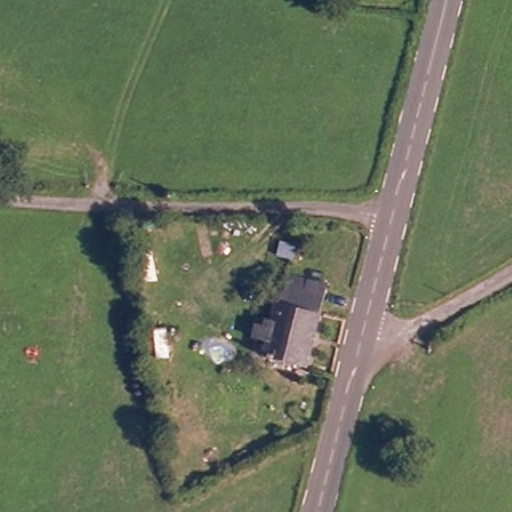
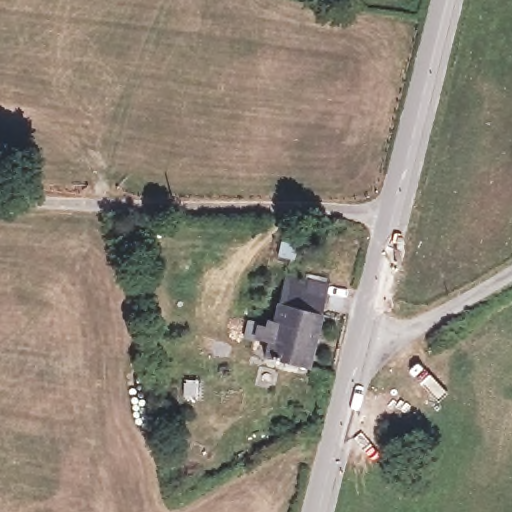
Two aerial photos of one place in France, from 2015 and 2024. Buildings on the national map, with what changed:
unchanged [(333,283),(312,372),(277,360),(276,363),(263,360),(267,343),(255,339),(260,322),(270,323),(286,272),(333,283)]

